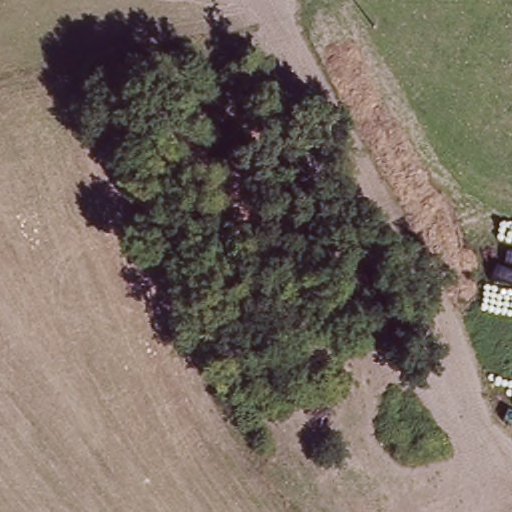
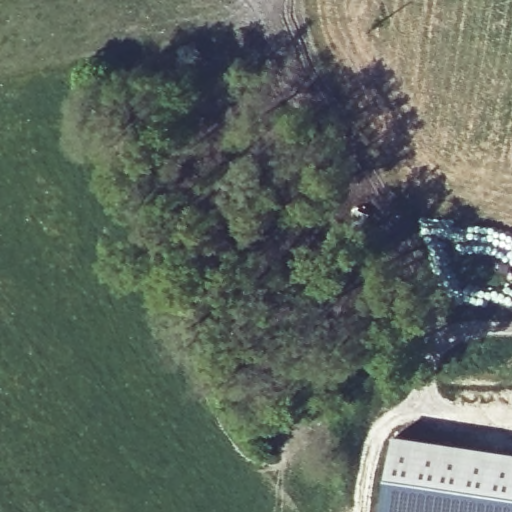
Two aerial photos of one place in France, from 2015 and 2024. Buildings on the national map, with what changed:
new [(399,433),(512,451),(512,512),(385,512),(399,433)]

